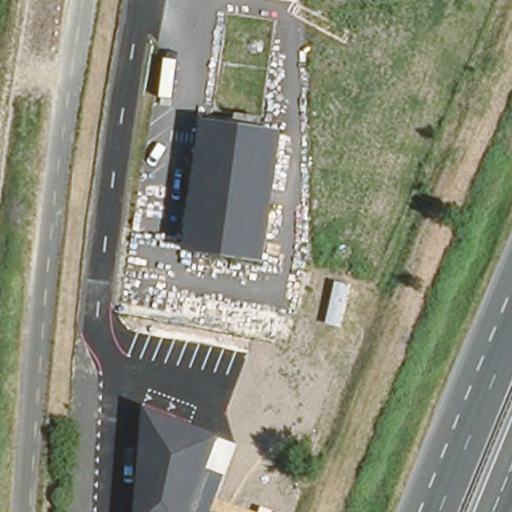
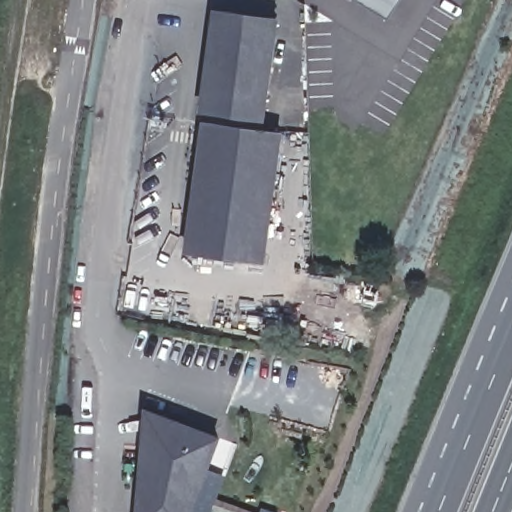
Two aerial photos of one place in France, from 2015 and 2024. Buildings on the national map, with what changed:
new [(399,0),(394,9),(387,20),(354,0),(399,0)]
new [(265,119),(199,112),(213,8),(279,16),(265,119)]
unchanged [(182,257),(198,123),(281,132),(265,266),(182,257)]
unchanged [(211,512),(137,512),(145,407),(221,436),(208,468),(224,474),(211,512)]

